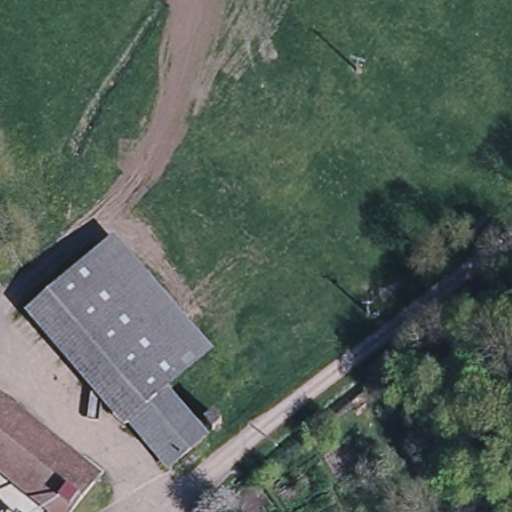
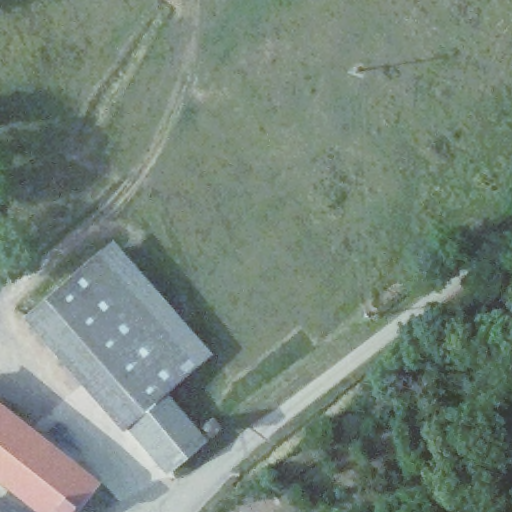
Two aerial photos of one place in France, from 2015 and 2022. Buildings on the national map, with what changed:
unchanged [(126,428),(23,318),(92,252),(193,363),(167,389),(132,423),(126,428)]
unchanged [(167,389),(212,437),(177,471),(132,423),(167,389)]
unchanged [(73,512),(42,512),(0,478),(0,409),(95,485),(73,512)]
unchanged [(217,414),(226,424),(218,431),(210,421),(217,414)]

